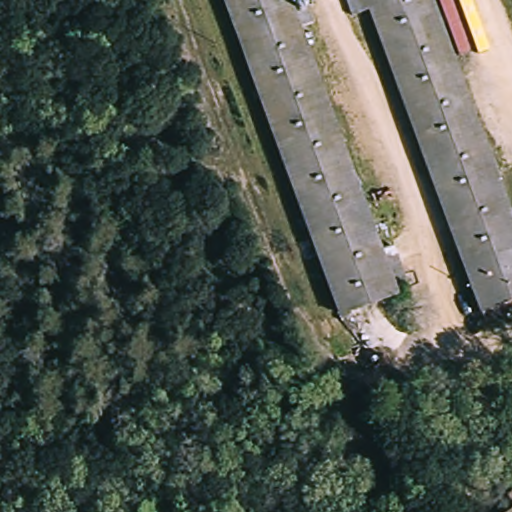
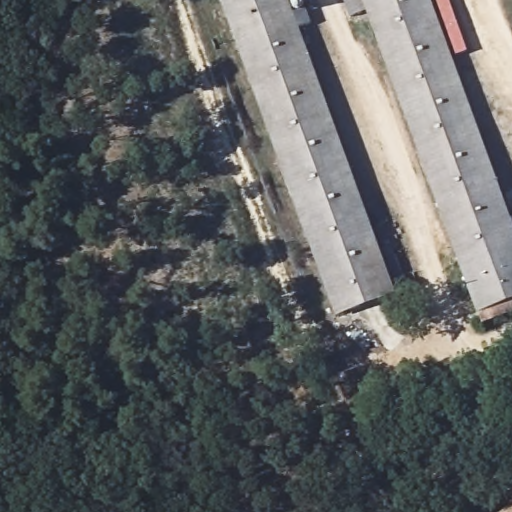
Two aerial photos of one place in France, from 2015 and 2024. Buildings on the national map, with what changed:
unchanged [(322,316),(213,0),(285,0),(385,294),(322,316)]
unchanged [(465,323),(356,0),(423,0),(512,263),(512,308),(465,323)]
unchanged [(500,500),(512,493),(512,512),(506,512),(500,500)]

